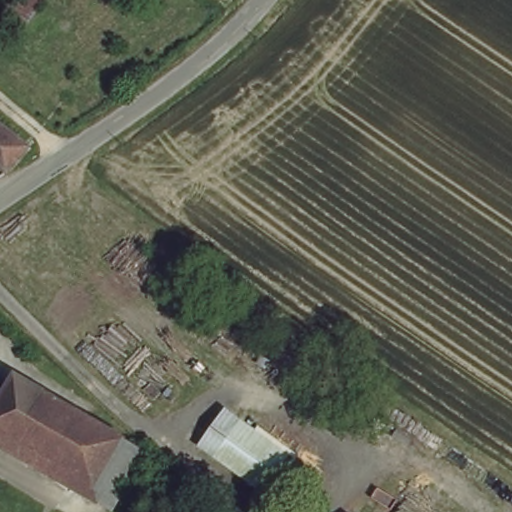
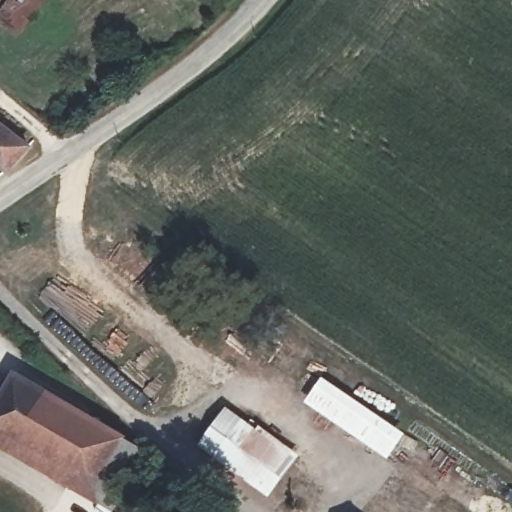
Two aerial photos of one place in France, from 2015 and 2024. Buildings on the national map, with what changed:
unchanged [(16,29),(0,17),(0,8),(6,0),(37,0),(16,29)]
unchanged [(7,169),(0,164),(0,123),(27,143),(7,169)]
unchanged [(99,483),(0,426),(0,402),(15,376),(19,370),(128,433),(99,483)]
new [(405,434),(388,458),(305,401),(322,377),(405,434)]
unchanged [(225,403),(300,456),(271,496),(199,445),(225,403)]
unchanged [(120,495),(112,510),(38,467),(0,444),(0,426),(99,483),(120,495)]
unchanged [(128,433),(143,442),(150,445),(149,447),(120,495),(99,483),(128,433)]

